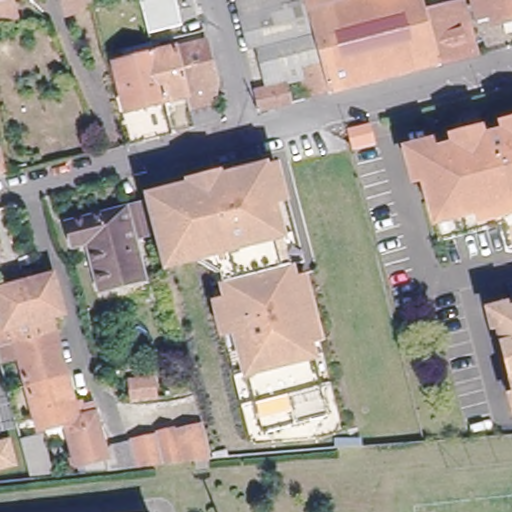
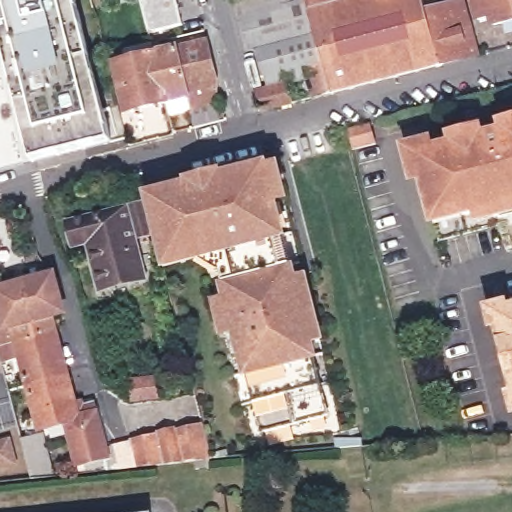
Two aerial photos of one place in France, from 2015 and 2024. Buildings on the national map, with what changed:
demolished [(0,2),(0,0),(7,0),(0,2)]
new [(0,27),(0,0),(75,0),(110,140),(33,159),(0,27)]
demolished [(73,10),(70,0),(94,0),(95,5),(73,10)]
unchanged [(153,31),(150,18),(146,5),(143,0),(179,0),(185,22),(153,31)]
unchanged [(310,72),(290,77),(295,100),(266,107),(261,85),(272,83),(262,40),(255,42),(243,0),(310,0),(335,90),(316,94),(310,72)]
unchanged [(444,0),(445,2),(454,0),(465,0),(480,54),(445,63),(335,90),(310,0),(428,0),(444,0)]
unchanged [(495,24),(493,15),(481,17),(477,0),(512,0),(512,19),(495,24)]
unchanged [(164,48),(207,37),(220,87),(215,100),(220,116),(197,123),(190,92),(169,97),(157,50),(155,40),(162,39),(164,48)]
unchanged [(108,58),(107,52),(124,48),(126,57),(157,50),(169,97),(130,107),(121,76),(113,78),(108,58)]
unchanged [(457,216),(428,223),(426,213),(411,155),(447,145),(445,136),(478,128),(481,137),(500,132),(497,124),(512,120),(512,213),(491,219),(473,223),(471,212),(457,216)]
unchanged [(368,126),(372,146),(354,151),(349,131),(368,126)]
demolished [(0,170),(0,157),(3,169),(0,170)]
unchanged [(235,365),(225,322),(216,291),(226,290),(221,271),(212,274),(208,260),(165,270),(154,228),(146,195),(144,190),(264,159),(273,194),(283,191),(292,225),(299,256),(290,259),(292,268),(302,266),(311,300),(319,332),(329,373),(319,376),(327,405),(260,422),(252,391),(242,395),(235,365)]
unchanged [(134,233),(144,270),(105,280),(92,235),(76,239),(69,213),(123,200),(124,200),(146,195),(154,228),(134,233)]
unchanged [(92,400),(96,411),(108,454),(73,463),(71,455),(76,452),(66,420),(40,427),(29,390),(10,395),(6,380),(25,375),(14,336),(0,340),(0,324),(3,322),(0,310),(0,288),(50,274),(59,310),(50,312),(72,397),(80,395),(83,402),(92,400)]
unchanged [(508,340),(504,325),(496,326),(490,303),(512,298),(512,340),(508,340)]
unchanged [(105,459),(118,455),(114,440),(133,435),(133,437),(159,430),(159,426),(174,422),(175,426),(202,420),(211,457),(107,468),(105,459)]
unchanged [(23,439),(42,433),(53,475),(32,476),(23,439)]
unchanged [(0,466),(0,442),(10,440),(16,462),(0,466)]

